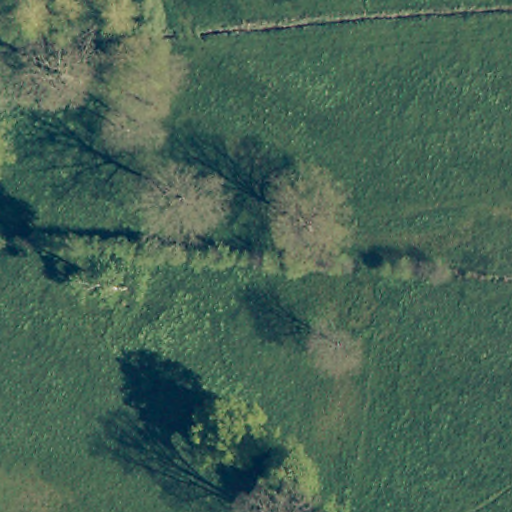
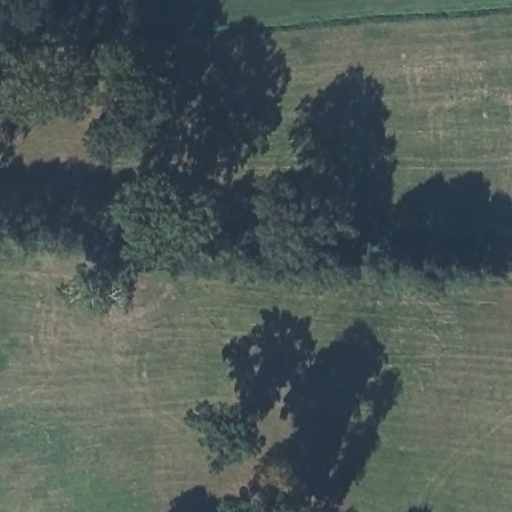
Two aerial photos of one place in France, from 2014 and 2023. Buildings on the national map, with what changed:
unchanged [(110,298),(86,296),(89,272),(113,275),(110,298)]

